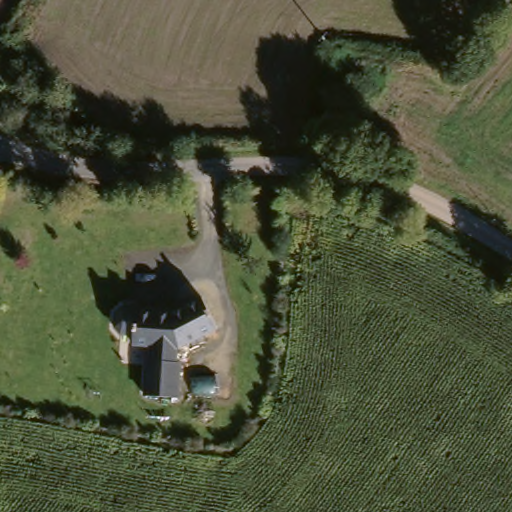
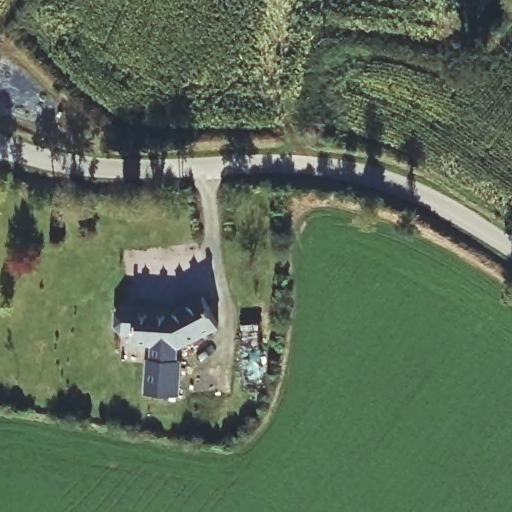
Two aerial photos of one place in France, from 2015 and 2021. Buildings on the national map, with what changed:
unchanged [(220,320),(182,341),(179,341),(179,357),(182,357),(180,392),(148,391),(150,356),(154,356),(155,340),(135,339),(135,331),(122,330),(116,323),(117,309),(124,302),(162,303),(162,307),(173,307),(204,290),(220,320)]

